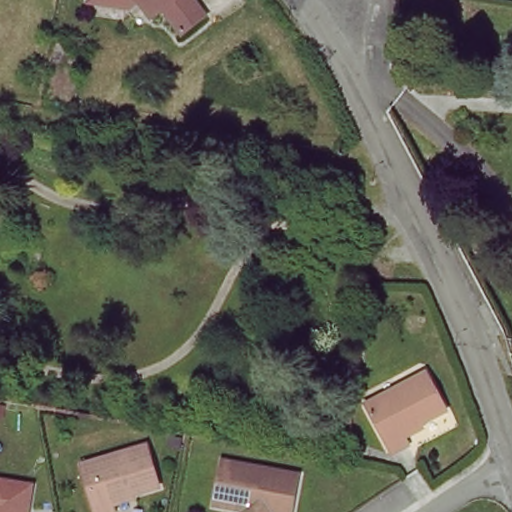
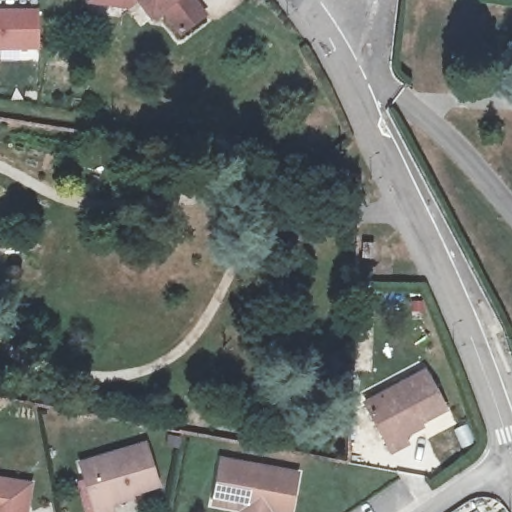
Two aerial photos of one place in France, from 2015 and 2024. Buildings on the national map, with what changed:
unchanged [(88,5),(89,0),(130,0),(130,11),(108,8),(88,5)]
unchanged [(180,37),(168,21),(152,20),(137,1),(130,0),(191,0),(205,20),(180,37)]
new [(32,50),(0,50),(0,5),(28,5),(32,50)]
unchanged [(372,254),(375,254),(373,270),(372,270),(363,270),(363,254),(372,254)]
unchanged [(443,412),(418,427),(416,431),(401,439),(405,446),(389,455),(363,407),(422,375),(443,412)]
unchanged [(157,490),(132,496),(123,497),(123,502),(110,505),(110,512),(107,512),(94,512),(83,462),(150,451),(157,490)]
unchanged [(210,506),(220,465),(295,478),(288,512),(237,512),(210,506)]
unchanged [(26,512),(0,512),(0,480),(30,485),(26,512)]

